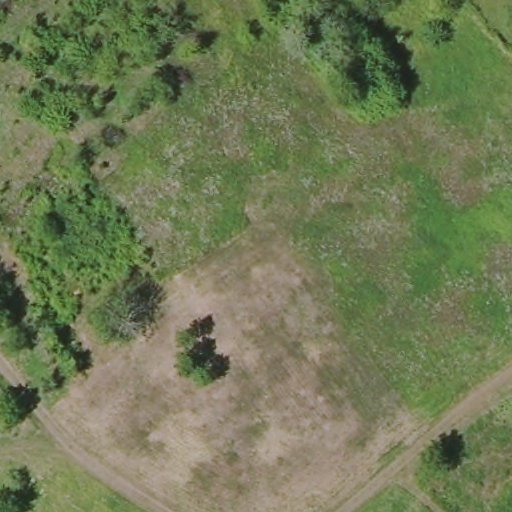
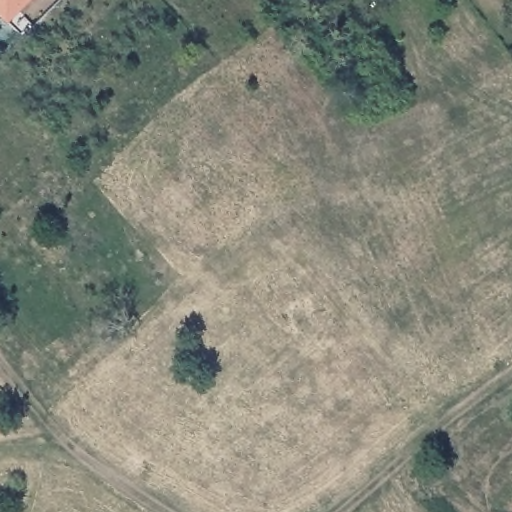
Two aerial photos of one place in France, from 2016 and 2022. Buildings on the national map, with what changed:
new [(0,13),(0,0),(30,0),(7,21),(0,13)]

